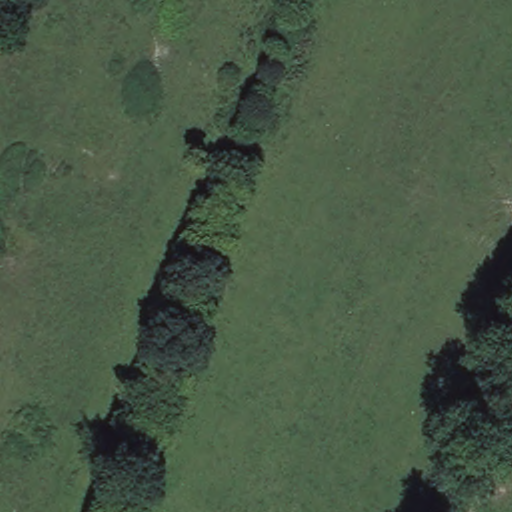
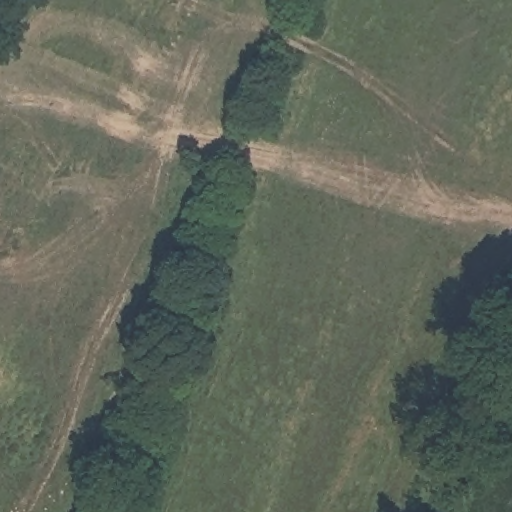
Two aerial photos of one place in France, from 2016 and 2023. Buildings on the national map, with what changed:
[]

